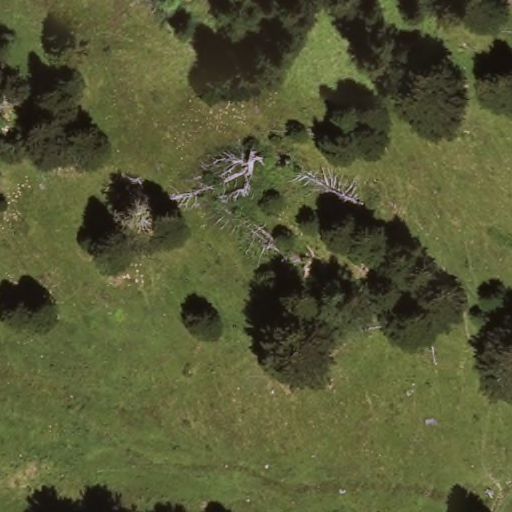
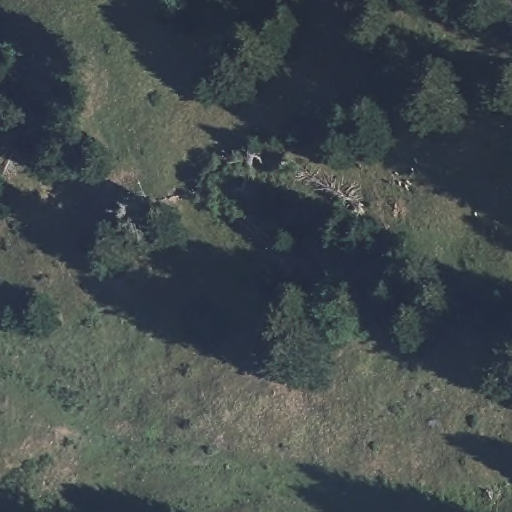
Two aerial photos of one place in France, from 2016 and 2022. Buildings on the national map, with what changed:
[]

